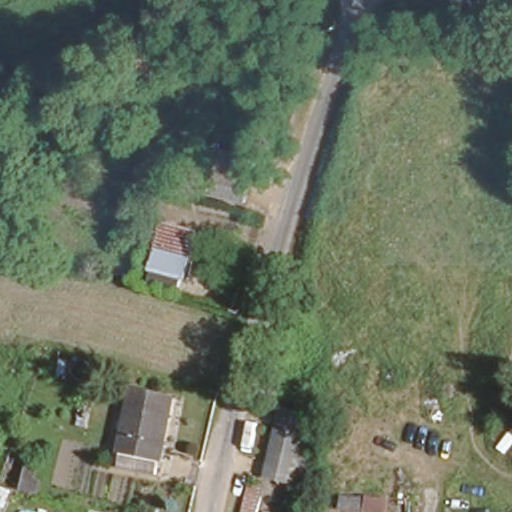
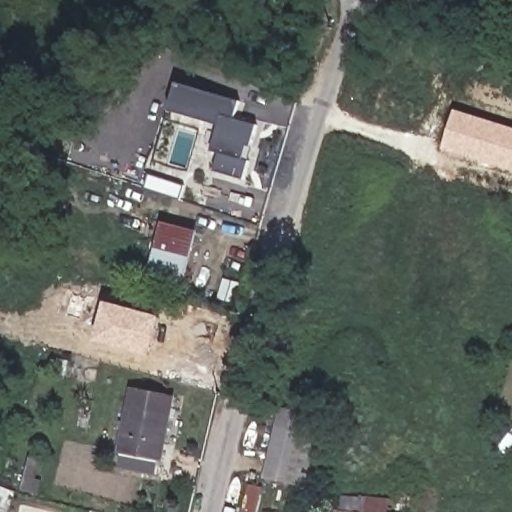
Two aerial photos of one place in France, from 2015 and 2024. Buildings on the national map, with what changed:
new [(235,117),(257,124),(251,146),(248,145),(244,158),(250,160),(244,179),(214,170),(220,152),(211,150),(219,125),(168,111),(176,82),(239,100),(235,117)]
new [(512,172),(443,151),(455,111),(512,129),(512,172)]
demolished [(210,192),(219,147),(254,155),(244,200),(210,192)]
unchanged [(150,277),(163,214),(191,220),(178,282),(150,277)]
new [(160,317),(151,355),(95,341),(105,302),(160,317)]
unchanged [(117,465),(137,380),(174,388),(154,474),(117,465)]
unchanged [(309,467),(305,483),(263,473),(278,401),(309,407),(296,464),(309,467)]
unchanged [(0,500),(0,480),(7,482),(2,500),(0,500)]
unchanged [(330,506),(375,512),(330,512),(330,506)]

